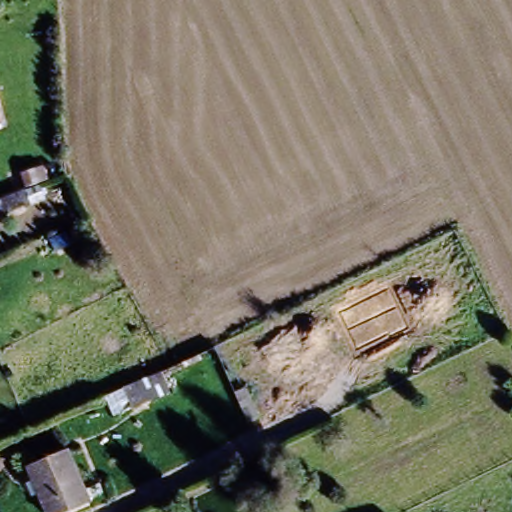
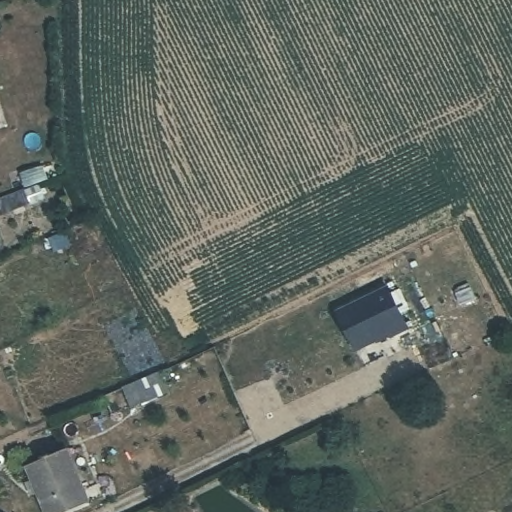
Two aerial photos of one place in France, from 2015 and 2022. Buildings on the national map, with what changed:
new [(389,286),(410,327),(392,336),(391,333),(357,349),(338,311),(389,286)]
unchanged [(46,512),(25,463),(65,447),(90,504),(72,512),(46,512)]

